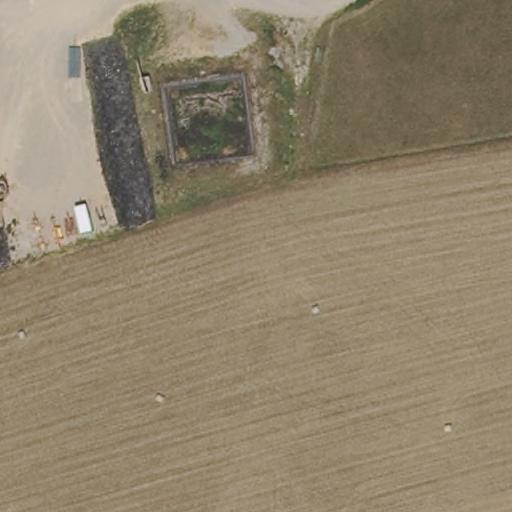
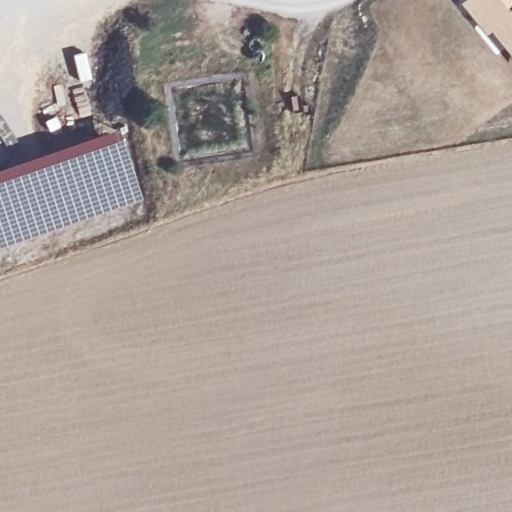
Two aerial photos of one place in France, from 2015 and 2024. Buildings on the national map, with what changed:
new [(491,8),(485,0),(512,0),(512,46),(490,19),(491,8)]
new [(0,247),(0,169),(117,129),(142,200),(0,247)]

